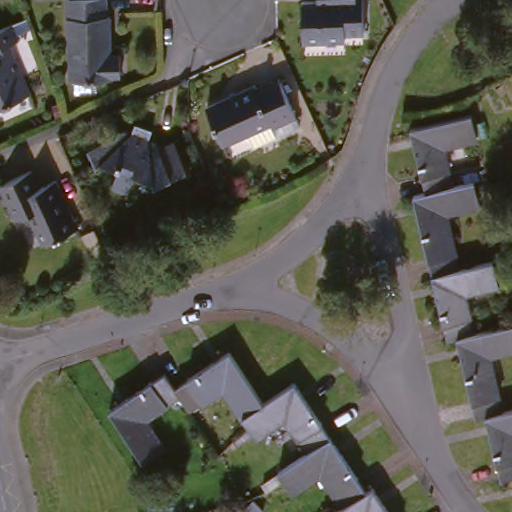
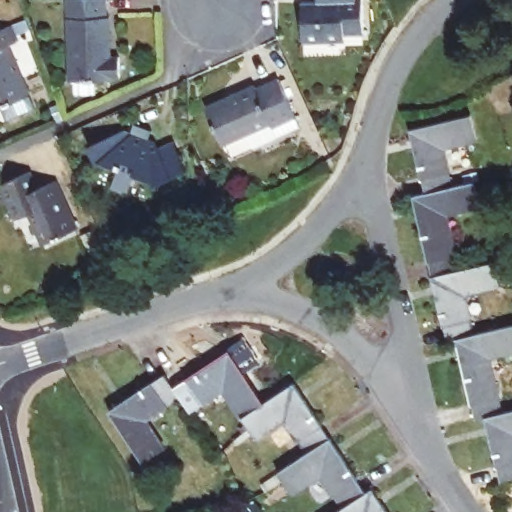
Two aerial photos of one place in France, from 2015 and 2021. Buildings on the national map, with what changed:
unchanged [(126,78),(116,78),(115,82),(73,82),(73,0),(110,0),(111,17),(117,18),(118,59),(127,60),(126,78)]
unchanged [(347,42),(304,44),(304,2),(318,2),(318,0),(363,0),(364,35),(347,35),(347,42)]
unchanged [(15,45),(7,49),(27,98),(0,110),(0,33),(9,30),(15,45)]
unchanged [(251,143),(246,134),(225,142),(209,107),(256,86),(258,90),(279,81),(294,115),(278,123),(274,125),(273,121),(269,123),(274,133),(251,143)]
unchanged [(427,195),(413,130),(430,126),(474,117),(479,142),(478,142),(447,150),(455,190),(427,195)]
unchanged [(168,186),(143,180),(139,190),(121,185),(124,172),(109,167),(99,149),(134,132),(143,135),(145,130),(160,135),(159,141),(167,144),(170,150),(184,146),(197,173),(168,186)]
unchanged [(43,245),(28,216),(16,221),(8,207),(2,209),(0,205),(0,189),(31,175),(39,191),(54,184),(76,230),(43,245)]
unchanged [(476,185),(481,210),(456,216),(449,218),(461,272),(433,279),(414,199),(427,195),(455,190),(476,185)]
unchanged [(471,270),(493,265),(498,290),(476,296),(468,298),(474,336),(457,340),(447,342),(433,279),(461,272),(471,270)]
unchanged [(512,328),(512,356),(491,360),(503,416),(486,420),(476,422),(457,340),(474,336),(499,331),(512,328)]
unchanged [(243,416),(223,388),(189,408),(183,398),(174,386),(232,350),(266,401),(243,416)]
unchanged [(183,398),(147,420),(165,448),(144,462),(111,409),(166,375),(174,386),(183,398)]
unchanged [(308,451),(301,441),(299,440),(283,416),(255,433),(243,416),(266,401),(281,392),(295,383),(330,438),(308,451)]
unchanged [(512,414),(512,481),(499,483),(486,420),(503,416),(511,414),(512,414)]
unchanged [(344,506),(337,495),(334,495),(320,474),(293,490),(279,470),(287,465),(308,451),(330,438),(365,493),(344,506)]
unchanged [(344,506),(365,493),(370,490),(371,490),(385,512),(335,512),(344,506)]

